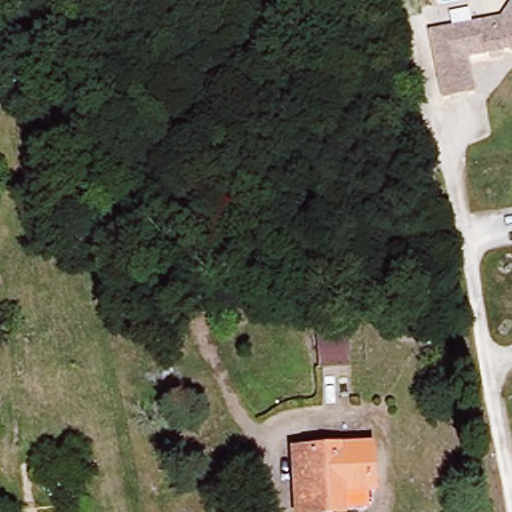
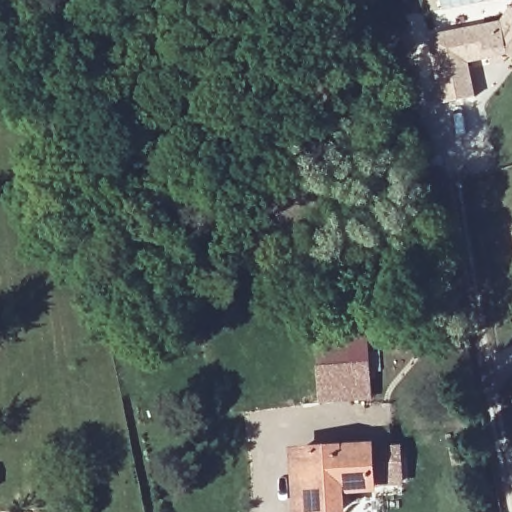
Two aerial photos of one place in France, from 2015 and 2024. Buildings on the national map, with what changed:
unchanged [(485,57),(463,61),(470,96),(438,103),(424,36),(495,20),(505,5),(512,10),(512,59),(502,53),(498,54),(499,60),(486,62),(485,57)]
new [(370,336),(374,401),(318,405),(313,339),(370,336)]
unchanged [(370,447),(369,489),(342,488),(342,512),(297,512),(298,446),(370,447)]

